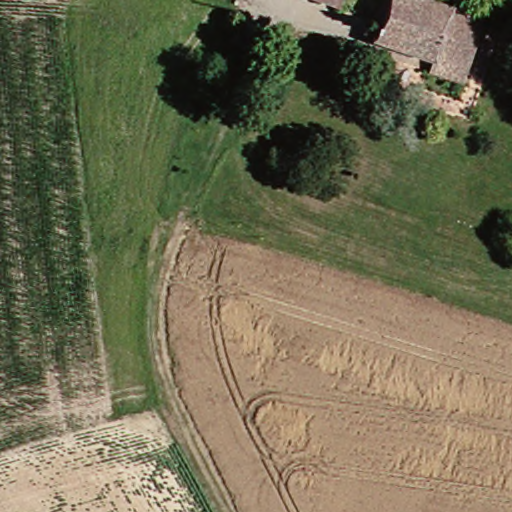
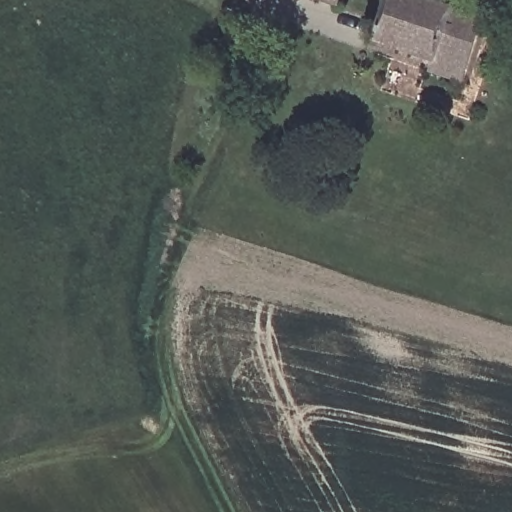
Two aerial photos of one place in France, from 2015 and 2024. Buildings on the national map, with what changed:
unchanged [(328,3),(316,0),(329,0),(328,3)]
unchanged [(459,72),(367,43),(384,0),(429,0),(477,16),(459,72)]

